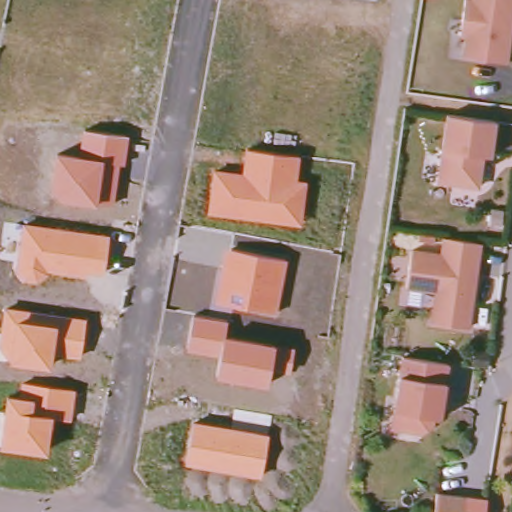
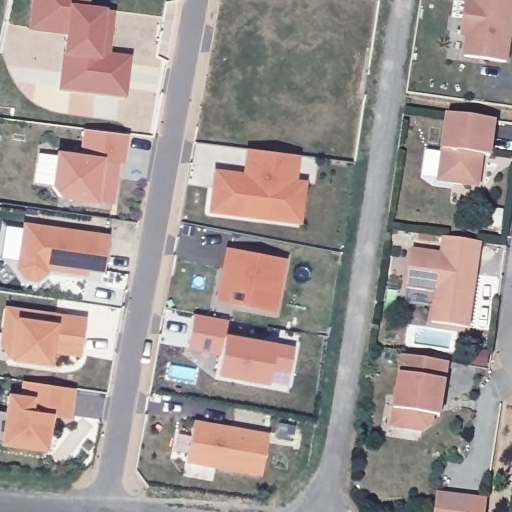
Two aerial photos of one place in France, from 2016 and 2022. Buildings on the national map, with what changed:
new [(105,7),(105,11),(115,12),(109,52),(131,56),(126,96),(57,87),(62,54),(65,37),(28,30),(32,0),(88,0),(87,5),(105,7)]
unchanged [(465,60),(467,39),(461,38),(465,2),(475,4),(475,0),(512,0),(512,27),(507,65),(465,60)]
unchanged [(497,122),(492,158),(485,157),(481,189),(441,185),(449,117),(497,122)]
unchanged [(78,154),(82,127),(128,135),(124,164),(119,163),(114,202),(97,201),(96,206),(57,199),(51,190),(57,150),(78,154)]
unchanged [(301,157),(297,177),(307,180),(301,224),(207,212),(213,167),(242,171),(245,147),(301,157)]
unchanged [(108,234),(102,274),(85,272),(84,277),(47,271),(33,280),(22,277),(16,262),(22,221),(108,234)]
unchanged [(480,245),(469,329),(432,325),(435,299),(405,296),(410,258),(440,262),(442,240),(480,245)]
unchanged [(286,259),(277,311),(216,299),(226,247),(286,259)]
unchanged [(79,357),(51,352),(49,368),(7,362),(8,359),(0,348),(0,332),(4,305),(86,317),(79,357)]
unchanged [(229,320),(226,335),(274,344),(267,386),(214,376),(219,355),(187,347),(192,312),(229,320)]
unchanged [(395,402),(400,362),(432,366),(447,368),(442,406),(436,405),(432,430),(422,437),(404,435),(391,433),(395,402)]
unchanged [(72,420),(52,417),(46,455),(0,446),(0,442),(0,406),(4,407),(7,393),(19,396),(21,380),(77,388),(72,420)]
unchanged [(269,433),(262,475),(185,462),(192,419),(269,433)]
unchanged [(487,504),(486,512),(436,512),(438,497),(487,504)]

